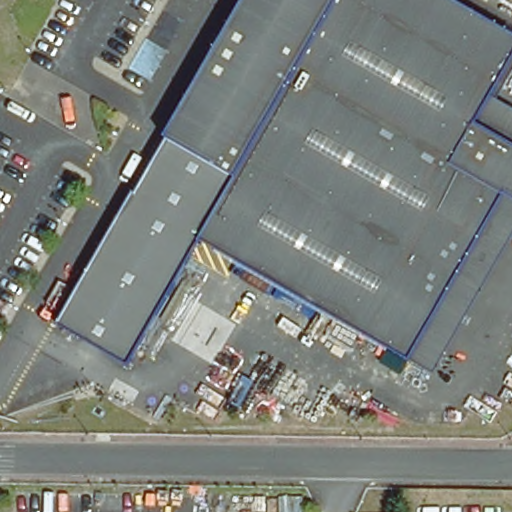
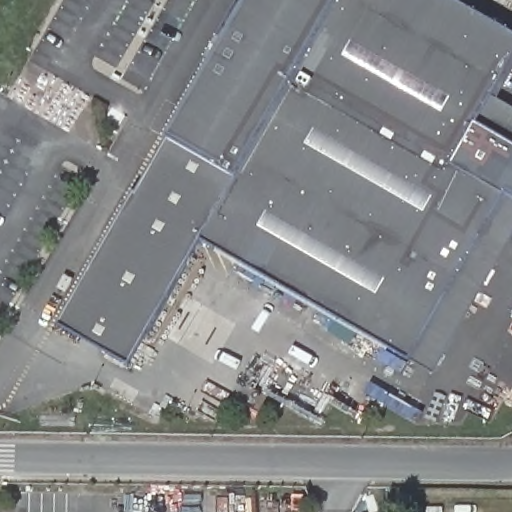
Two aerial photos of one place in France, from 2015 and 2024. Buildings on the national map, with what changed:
unchanged [(404,357),(403,358),(194,240),(124,367),(52,325),(158,137),(236,0),(455,0),(512,33),(512,46),(487,89),(468,122),(512,147),(512,202),(497,193),(404,357)]
unchanged [(512,147),(468,122),(487,89),(512,103),(512,147)]
unchanged [(404,357),(497,193),(512,202),(512,227),(430,372),(404,357)]

